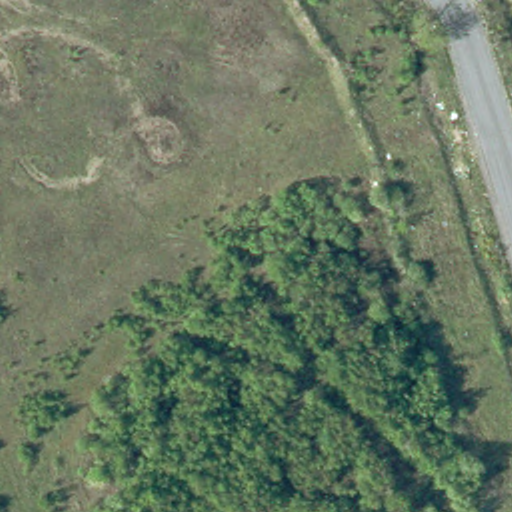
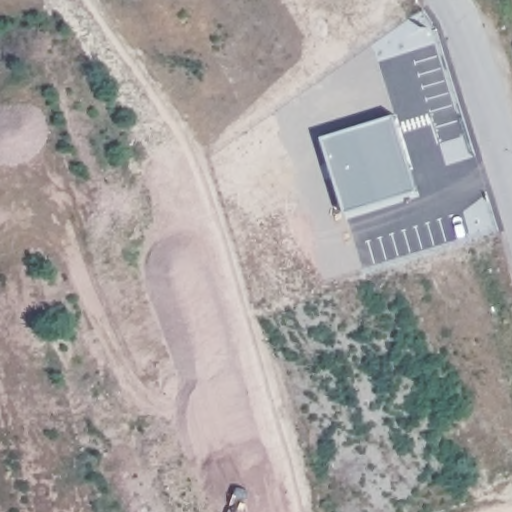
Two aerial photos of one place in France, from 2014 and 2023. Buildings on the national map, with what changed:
new [(397,112),(420,190),(346,211),(324,135),(397,112)]

